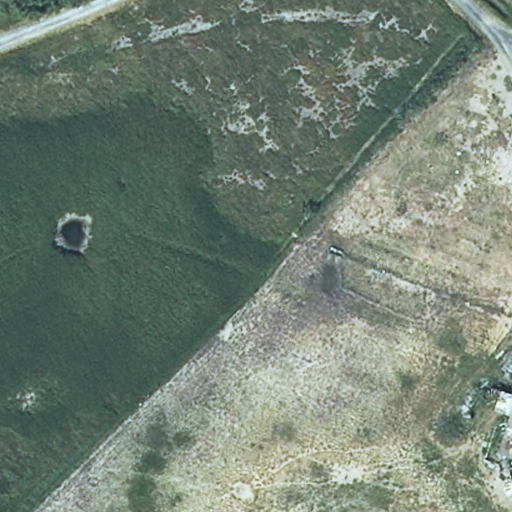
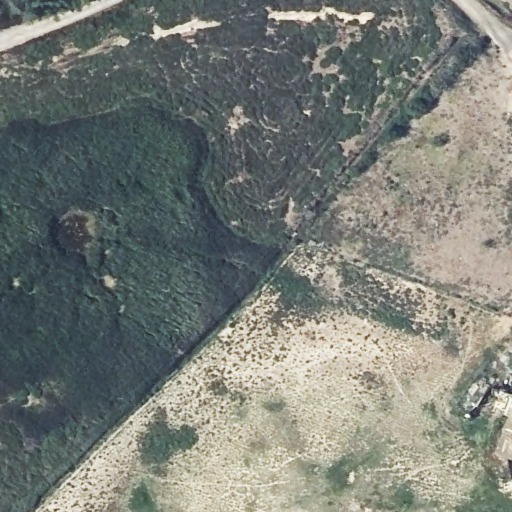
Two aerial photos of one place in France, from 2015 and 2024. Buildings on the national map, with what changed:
unchanged [(512,411),(512,460),(497,456),(512,411)]

